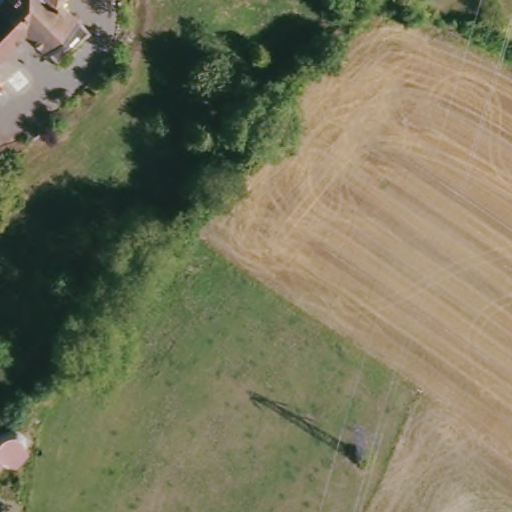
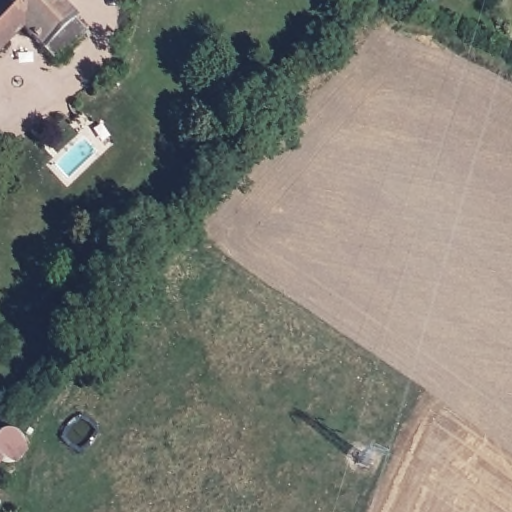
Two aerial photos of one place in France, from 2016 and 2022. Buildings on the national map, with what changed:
unchanged [(91,28),(60,62),(22,28),(0,48),(0,0),(61,0),(91,28)]
unchanged [(25,446),(15,457),(7,450),(3,453),(0,457),(0,415),(7,416),(29,433),(25,446)]

